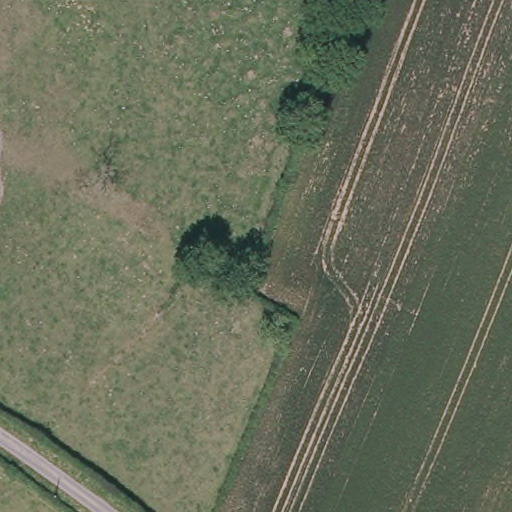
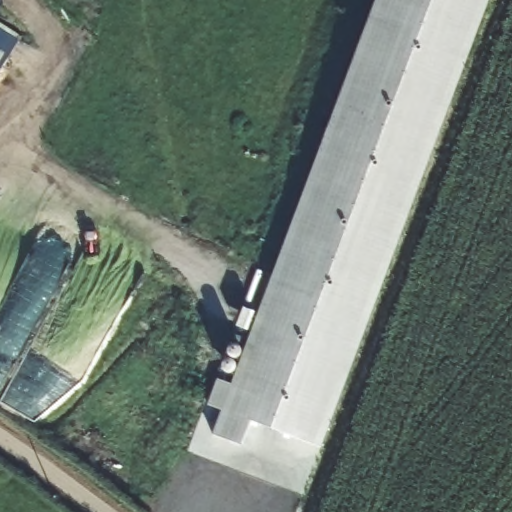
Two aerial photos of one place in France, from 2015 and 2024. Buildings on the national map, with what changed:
new [(376,0),(488,0),(320,447),(251,422),(242,446),(212,435),(376,0)]
unchanged [(17,44),(0,71),(0,32),(17,44)]
new [(208,405),(217,380),(232,385),(222,410),(208,405)]

